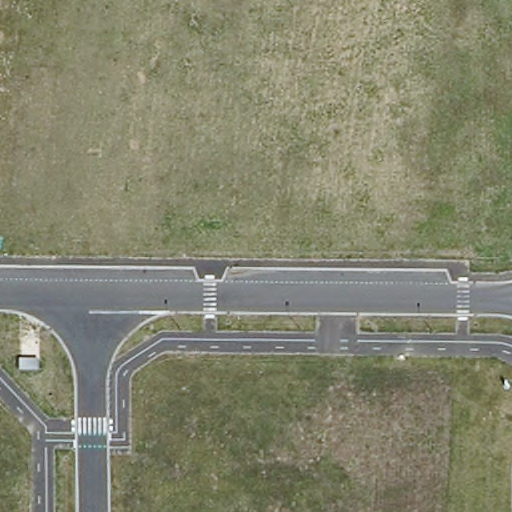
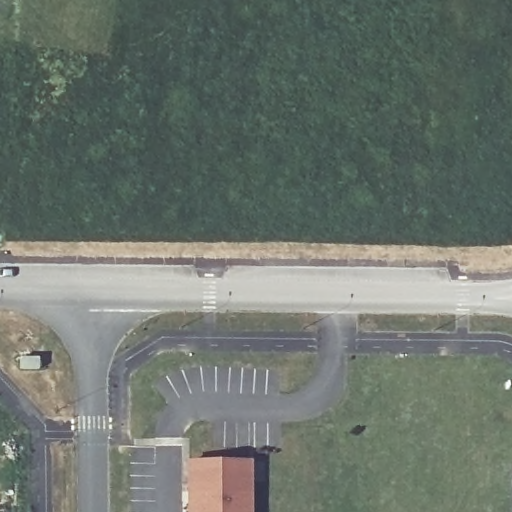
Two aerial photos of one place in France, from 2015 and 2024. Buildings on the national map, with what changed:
new [(188,460),(252,460),(252,512),(188,512),(188,460)]

